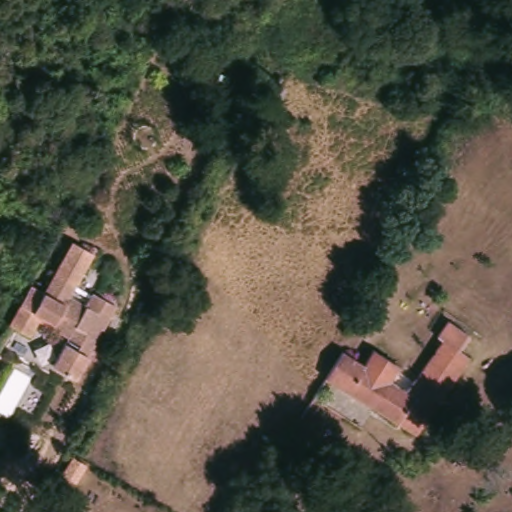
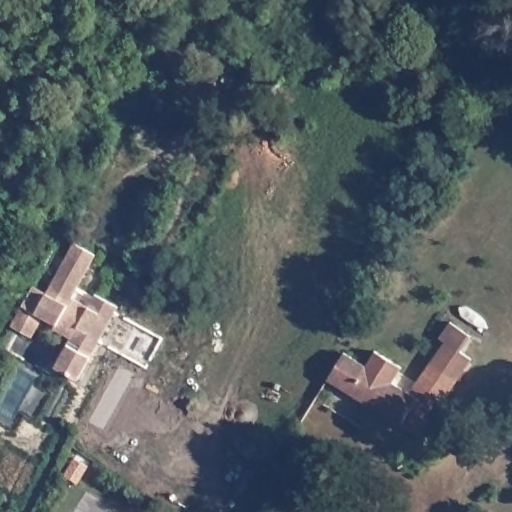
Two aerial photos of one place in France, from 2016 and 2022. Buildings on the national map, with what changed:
unchanged [(29,339),(9,328),(32,286),(43,292),(70,242),(93,254),(71,295),(87,303),(94,292),(117,304),(76,381),(53,369),(68,341),(51,332),(37,324),(29,339)]
unchanged [(446,343),(440,339),(451,322),(471,335),(463,348),(473,356),(440,408),(415,392),(446,343)]
unchanged [(380,350),(405,366),(397,381),(415,392),(440,408),(424,435),(333,377),(349,351),(371,365),(380,350)]

